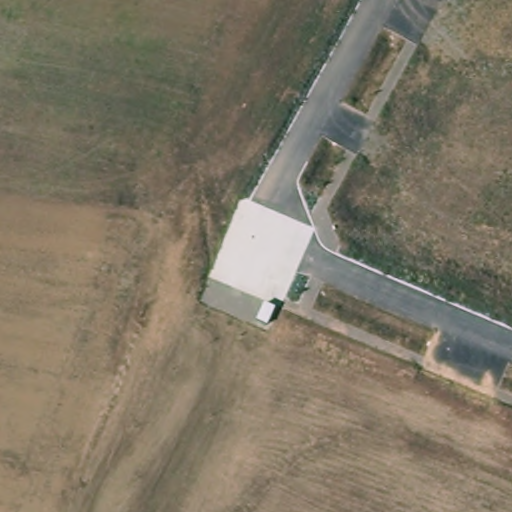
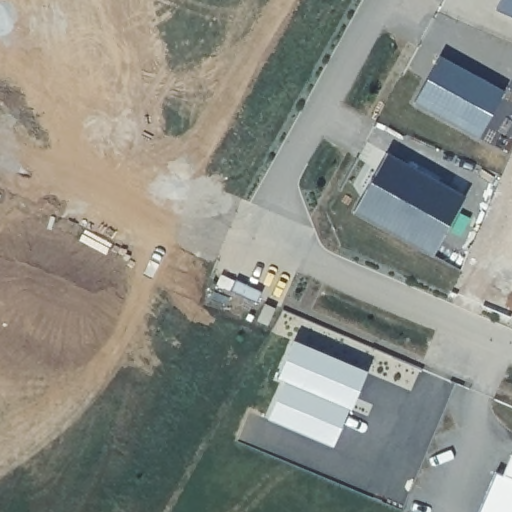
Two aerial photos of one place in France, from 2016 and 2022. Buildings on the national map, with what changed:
new [(495,11),(499,0),(512,0),(512,18),(495,11)]
new [(438,57),(502,93),(477,139),(413,104),(438,57)]
new [(386,154),(465,197),(432,257),(353,212),(386,154)]
new [(276,381),(292,342),(361,371),(364,372),(348,409),(331,448),(267,421),(283,383),(276,381)]
new [(495,473),(501,476),(512,450),(512,512),(478,512),(495,473)]

